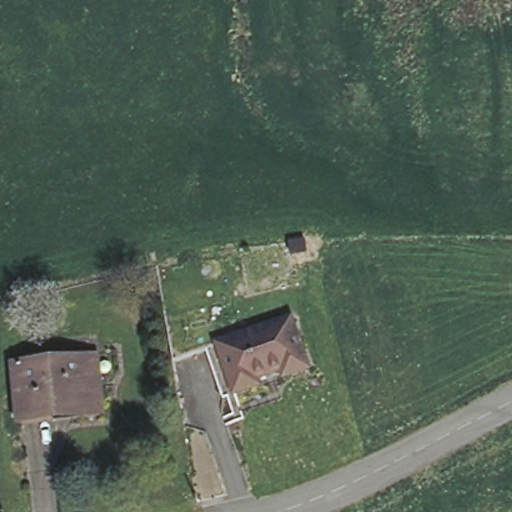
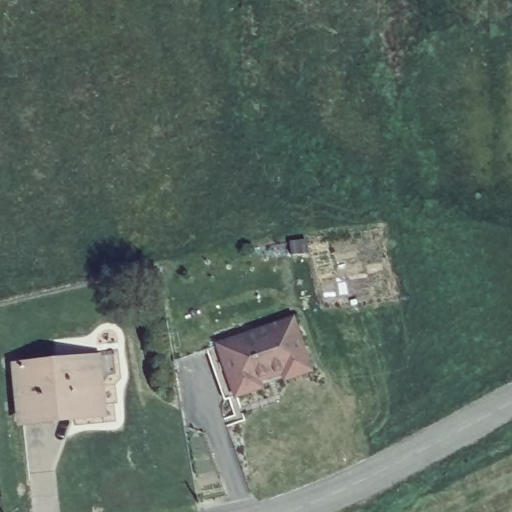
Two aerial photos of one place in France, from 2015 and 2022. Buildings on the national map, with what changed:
unchanged [(212,344),(222,340),(291,317),(297,315),(313,365),(302,369),(240,391),(229,395),(212,344)]
unchanged [(87,357),(98,356),(103,407),(92,408),(92,405),(53,409),(53,412),(21,415),(15,364),(87,356),(87,357)]

